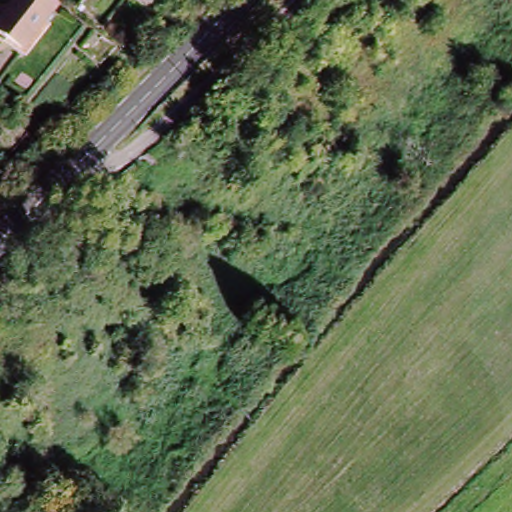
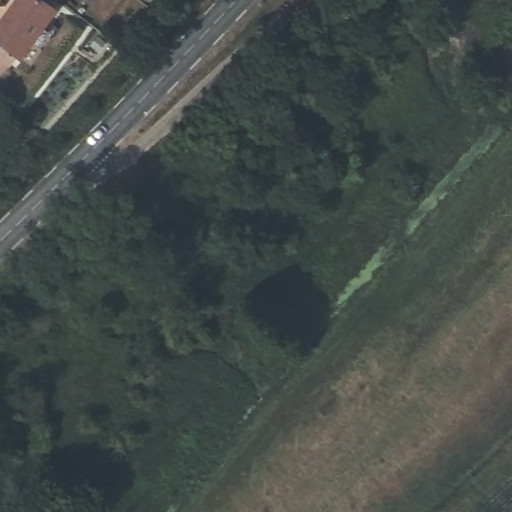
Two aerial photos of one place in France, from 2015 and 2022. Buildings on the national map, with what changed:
unchanged [(0,41),(0,32),(26,0),(27,0),(53,20),(22,58),(0,41)]

